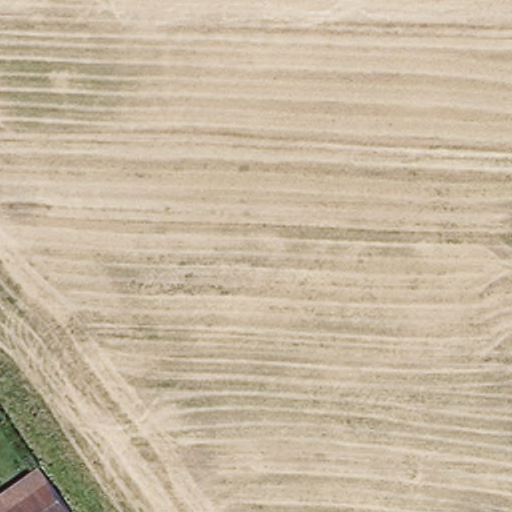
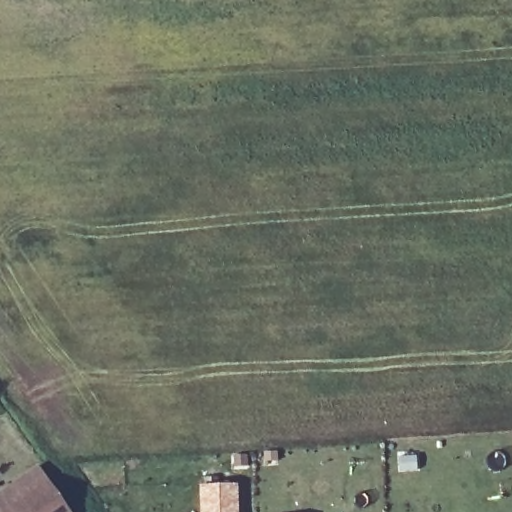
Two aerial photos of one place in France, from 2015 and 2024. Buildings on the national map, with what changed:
unchanged [(4,512),(0,512),(0,496),(37,470),(47,483),(4,512)]
unchanged [(67,512),(4,512),(47,483),(67,512)]
new [(237,512),(202,512),(202,487),(236,486),(237,512)]

